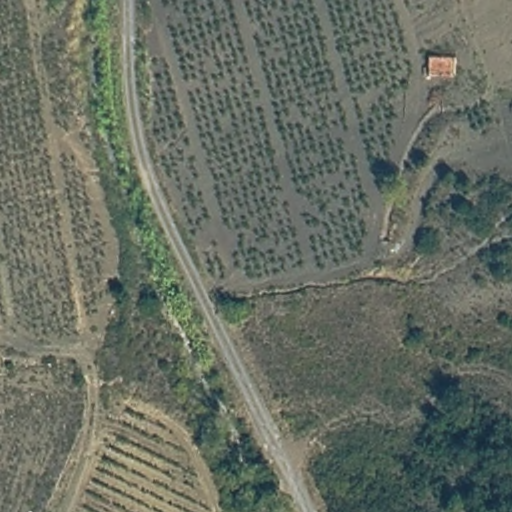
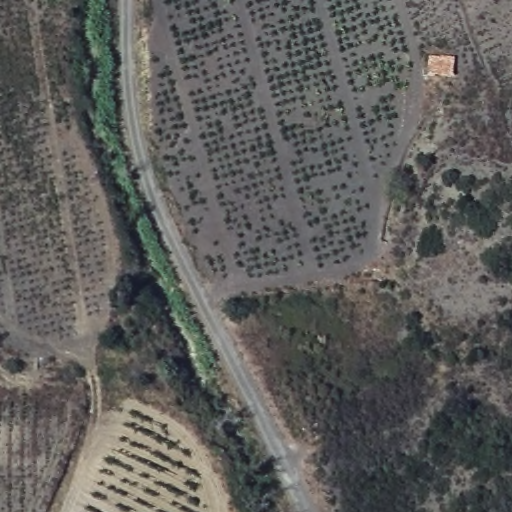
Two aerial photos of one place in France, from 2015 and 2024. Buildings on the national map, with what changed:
unchanged [(461,56),(461,71),(428,71),(428,52),(461,56)]

